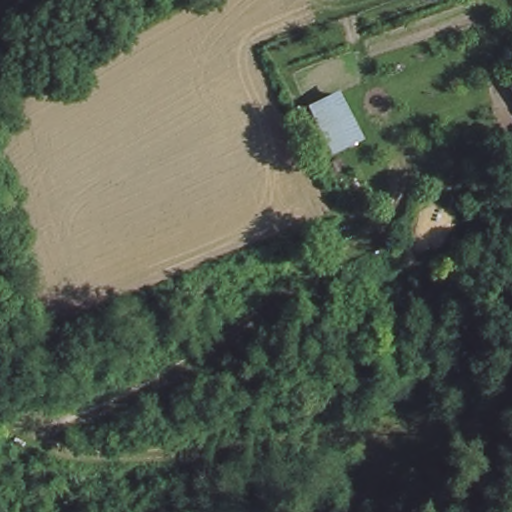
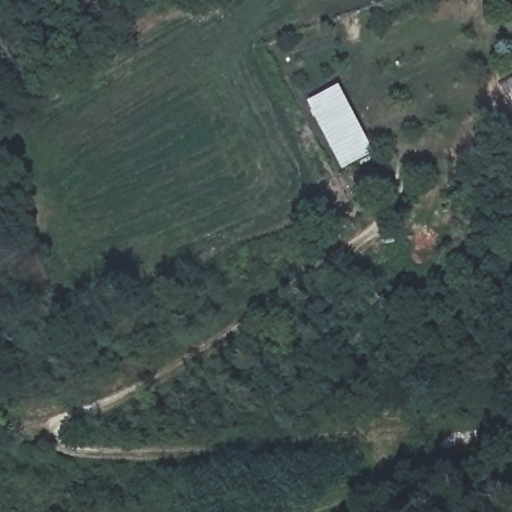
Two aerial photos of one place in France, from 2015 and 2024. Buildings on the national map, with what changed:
unchanged [(336,146),(310,101),(342,83),(368,132),(336,146)]

